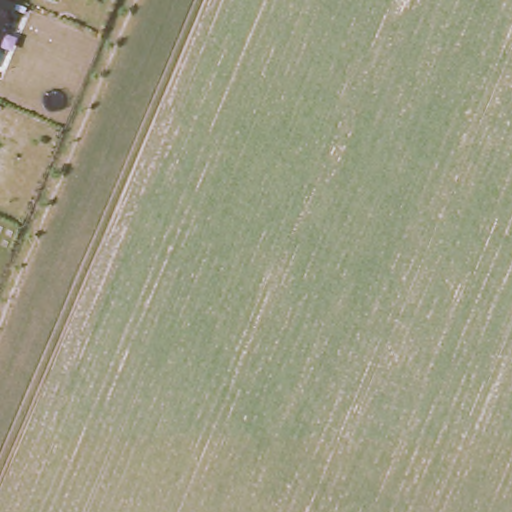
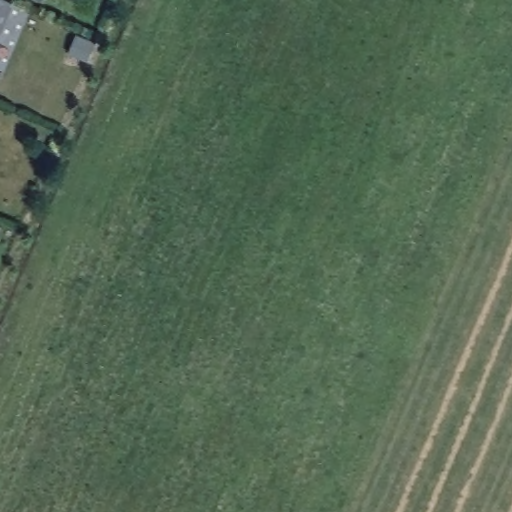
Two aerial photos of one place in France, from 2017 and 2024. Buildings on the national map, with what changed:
unchanged [(0,34),(0,0),(1,0),(11,4),(0,34)]

